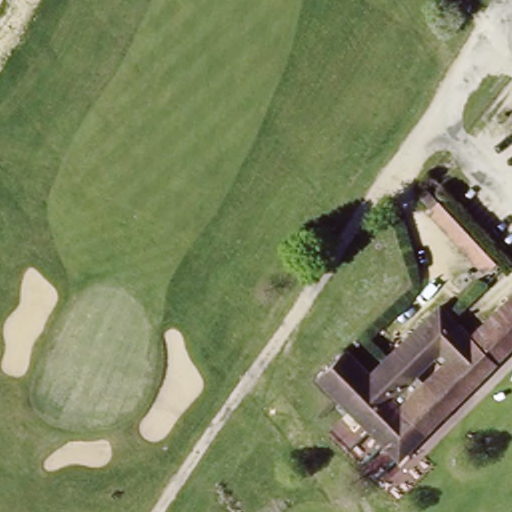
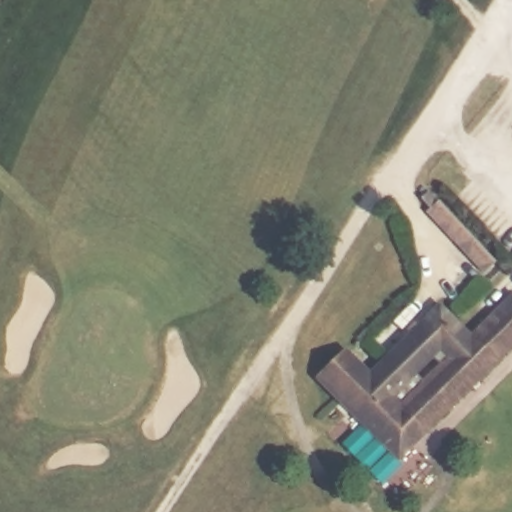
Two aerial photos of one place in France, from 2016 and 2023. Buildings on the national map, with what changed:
unchanged [(512,263),(512,267),(506,272),(503,269),(497,275),(490,267),(483,272),(425,213),(429,209),(418,198),(439,184),(512,263)]
unchanged [(474,346),(512,305),(512,352),(404,464),(322,378),(352,352),(373,373),(435,310),(474,346)]

